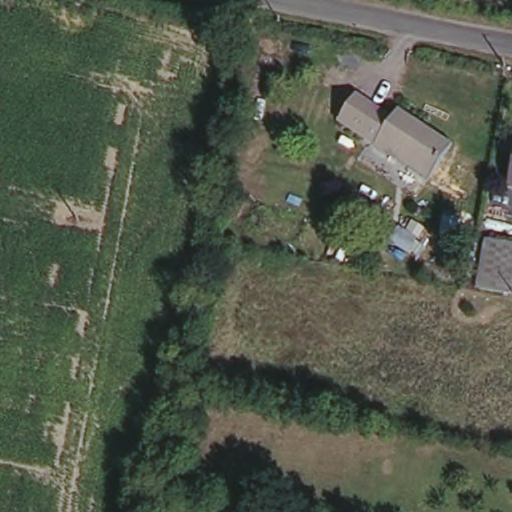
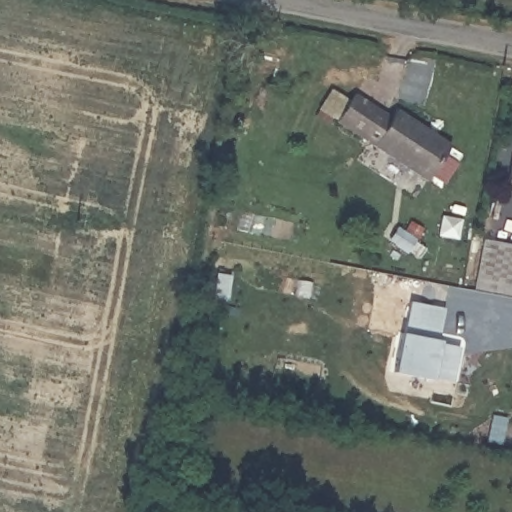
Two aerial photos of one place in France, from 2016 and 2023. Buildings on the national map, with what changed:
unchanged [(342,115),(365,84),(397,106),(401,101),(455,140),(427,176),(342,115)]
unchanged [(512,187),(509,186),(512,172),(512,187)]
unchanged [(483,233),(512,239),(512,291),(474,284),(483,233)]
new [(439,338),(442,339),(442,346),(458,347),(451,383),(433,381),(394,373),(401,332),(405,333),(410,303),(445,311),(439,338)]

